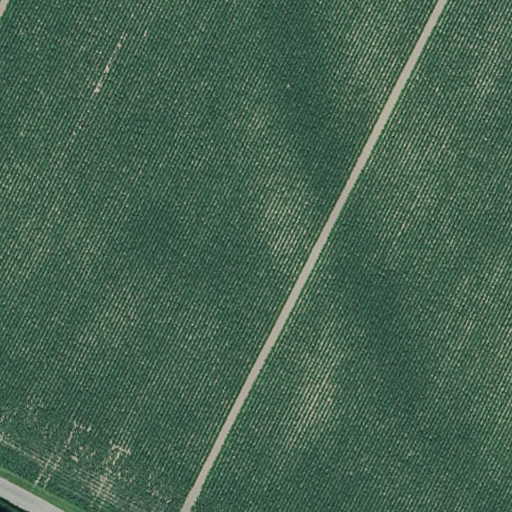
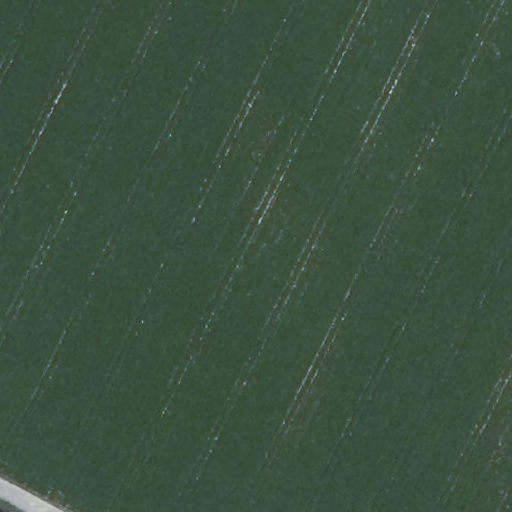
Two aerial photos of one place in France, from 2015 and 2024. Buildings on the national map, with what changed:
[]

